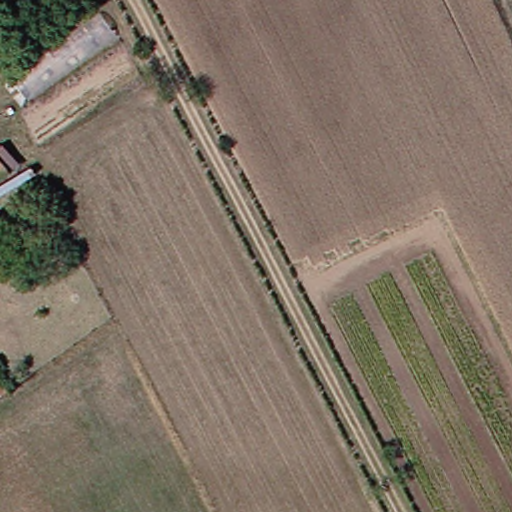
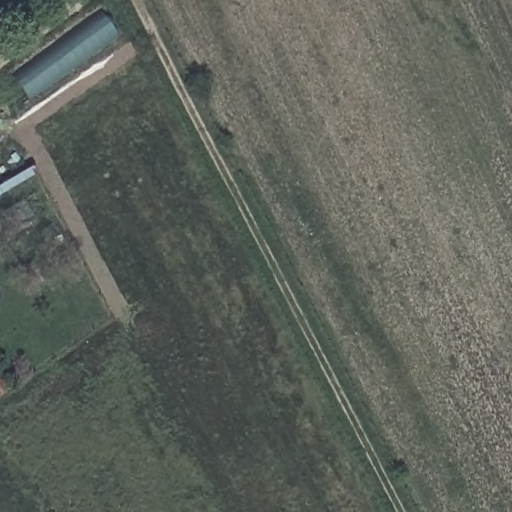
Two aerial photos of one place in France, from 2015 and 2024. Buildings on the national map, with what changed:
new [(104,15),(120,36),(30,99),(15,75),(104,15)]
unchanged [(0,384),(0,378),(3,382),(0,384)]

